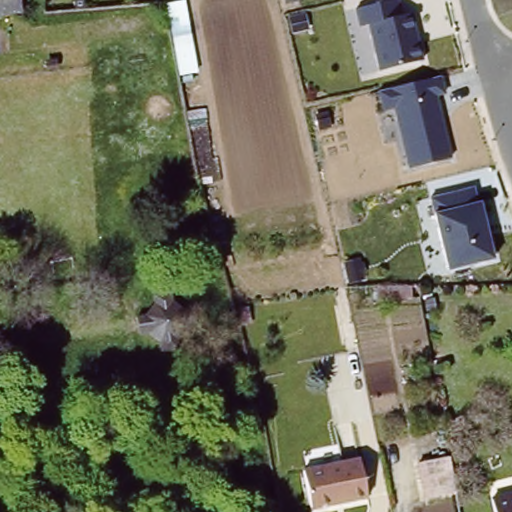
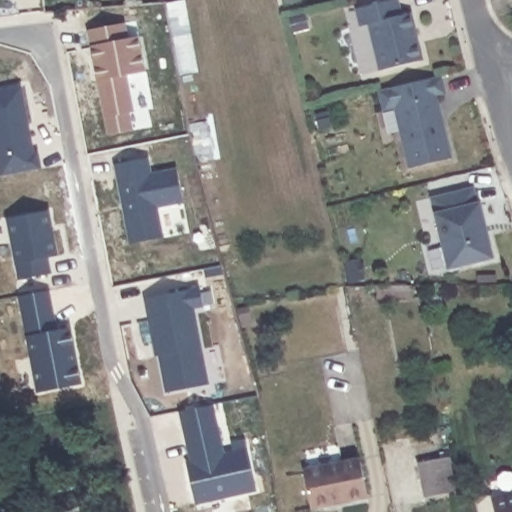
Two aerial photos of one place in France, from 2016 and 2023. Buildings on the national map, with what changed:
demolished [(0,17),(0,0),(21,0),(23,14),(0,17)]
unchanged [(187,0),(199,74),(177,77),(165,3),(181,0),(187,0)]
new [(285,8),(284,0),(299,0),(300,5),(285,8)]
unchanged [(398,0),(401,14),(411,12),(422,61),(377,70),(367,22),(357,24),(354,8),(391,0),(398,0)]
new [(303,16),(306,31),(292,35),(288,20),(303,16)]
new [(145,72),(126,76),(133,112),(129,113),(132,131),(108,135),(87,30),(125,23),(127,39),(138,37),(145,72)]
unchanged [(393,109),(381,111),(377,88),(442,76),(446,96),(438,98),(451,160),(406,170),(393,109)]
new [(34,153),(38,152),(42,169),(0,177),(0,89),(20,86),(34,153)]
new [(148,158),(151,174),(177,169),(183,203),(158,208),(163,238),(130,244),(122,212),(126,212),(125,202),(120,202),(114,164),(148,158)]
unchanged [(433,214),(429,196),(475,185),(480,202),(495,260),(447,270),(433,214)]
new [(48,211),(57,256),(48,257),(51,273),(19,280),(6,219),(48,211)]
new [(200,287),(203,306),(192,307),(207,384),(166,392),(156,342),(153,343),(145,298),(200,287)]
new [(70,328),(75,351),(71,352),(75,365),(76,364),(80,384),(40,392),(22,314),(18,296),(47,290),(51,307),(56,331),(70,328)]
demolished [(195,337),(186,348),(187,360),(170,362),(168,352),(156,345),(146,346),(143,329),(152,327),(162,316),(160,306),(176,303),(178,312),(189,320),(200,318),(205,337),(195,337)]
new [(213,405),(225,454),(247,449),(256,490),(195,504),(185,463),(190,462),(178,411),(213,405)]
unchanged [(430,498),(423,464),(452,458),(459,492),(430,498)]
unchanged [(367,502),(312,512),(305,472),(360,462),(367,502)]
unchanged [(493,497),(512,492),(512,512),(498,512),(493,497)]

